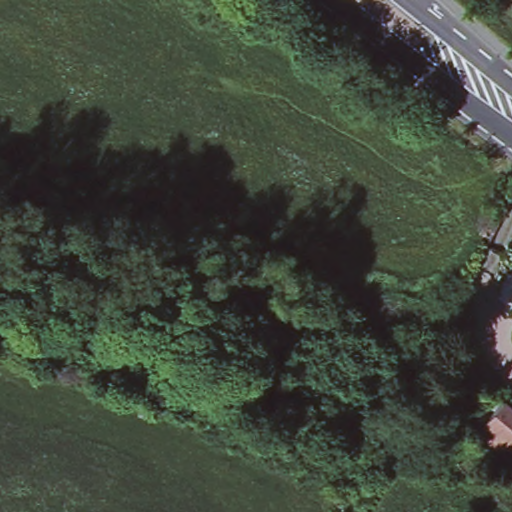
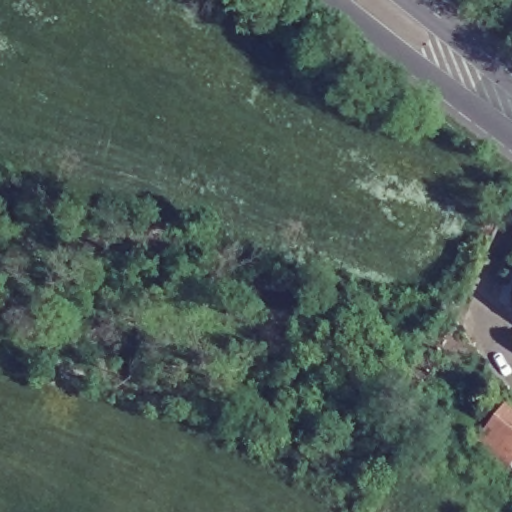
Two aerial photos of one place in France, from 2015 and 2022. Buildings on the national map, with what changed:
unchanged [(512,461),(478,434),(490,420),(507,398),(512,402),(512,460),(512,461)]

